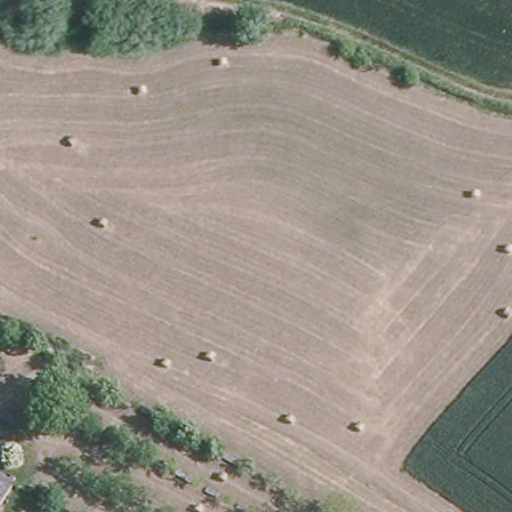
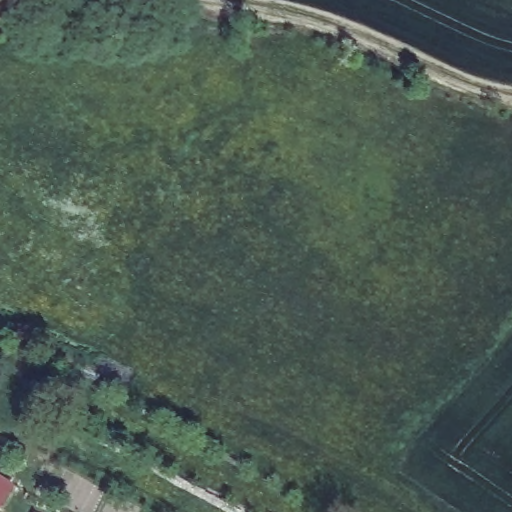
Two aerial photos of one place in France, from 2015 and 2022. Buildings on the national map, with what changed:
unchanged [(0,497),(0,479),(8,485),(0,497)]

